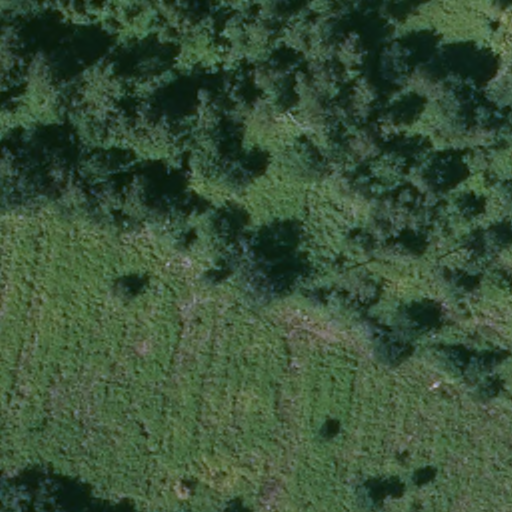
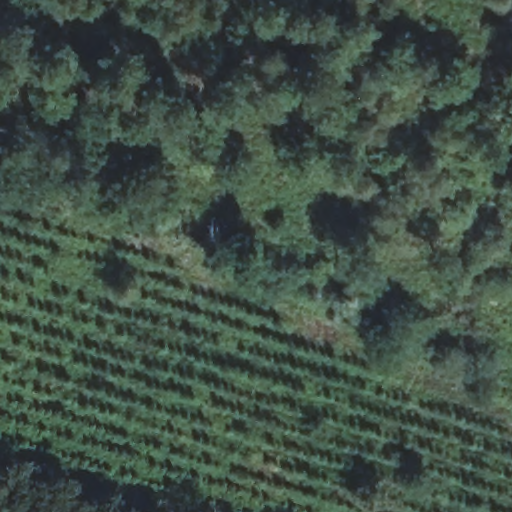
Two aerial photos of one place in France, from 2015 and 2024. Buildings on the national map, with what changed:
[]

